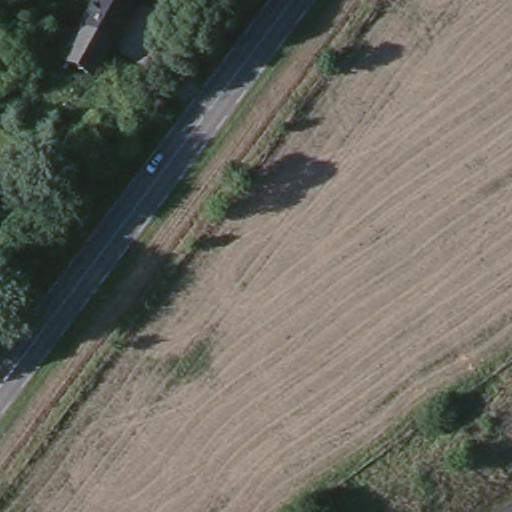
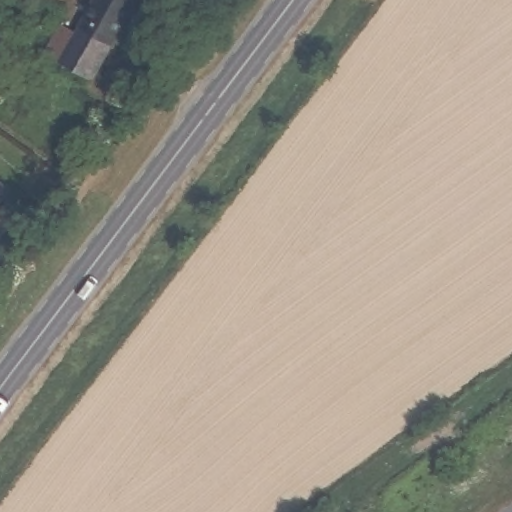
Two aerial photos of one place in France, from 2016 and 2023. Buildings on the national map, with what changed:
unchanged [(95,14),(102,0),(139,0),(93,85),(46,61),(78,4),(95,14)]
unchanged [(0,190),(0,185),(3,187),(0,190)]

